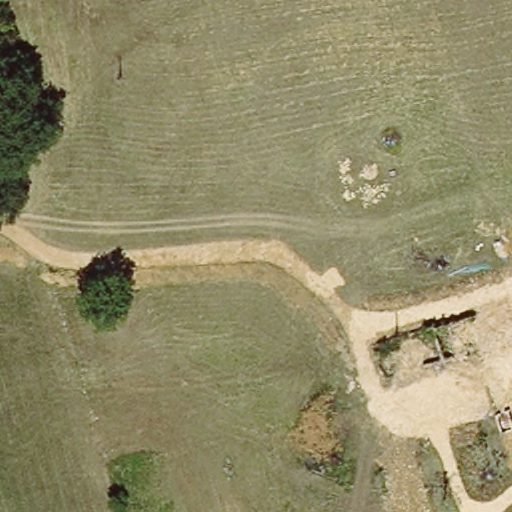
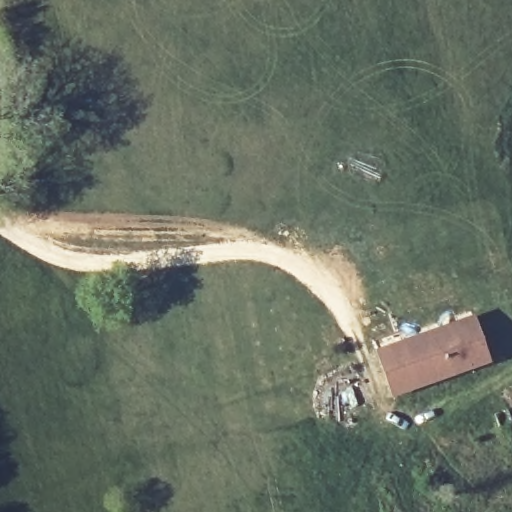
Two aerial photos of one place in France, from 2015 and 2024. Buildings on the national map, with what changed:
new [(475,315),(492,362),(392,398),(375,350),(475,315)]
demolished [(452,335),(502,321),(510,356),(462,373),(452,335)]
demolished [(452,335),(462,373),(432,380),(421,344),(452,335)]

